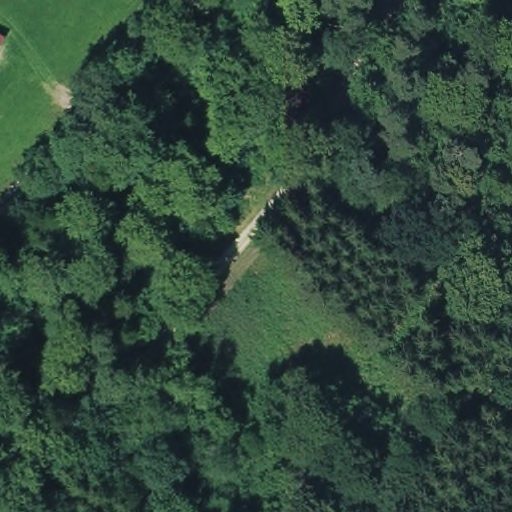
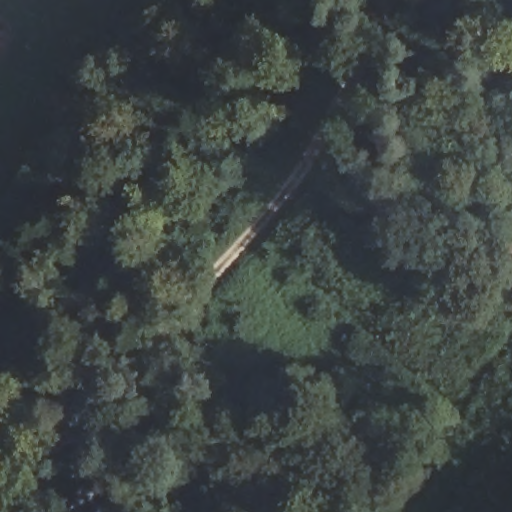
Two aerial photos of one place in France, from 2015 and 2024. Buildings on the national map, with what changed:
unchanged [(0,49),(0,31),(8,36),(0,49)]

